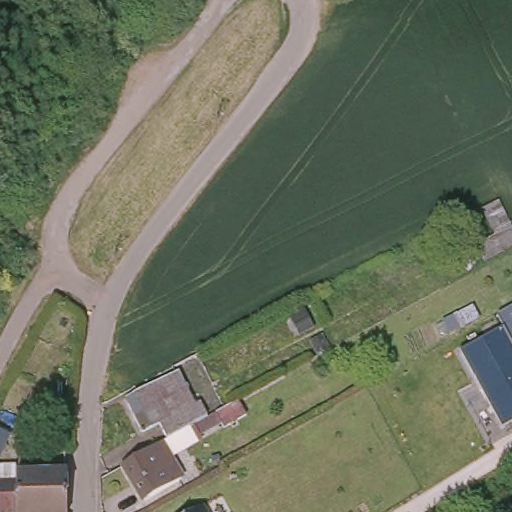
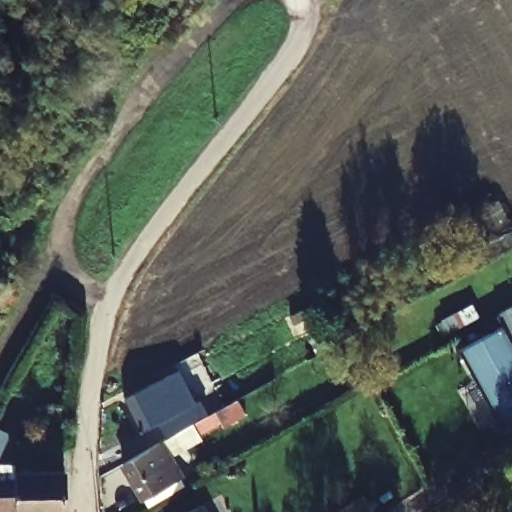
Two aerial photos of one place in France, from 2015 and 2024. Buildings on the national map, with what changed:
unchanged [(484,230),(477,203),(500,194),(512,226),(512,243),(478,262),(466,244),(484,230)]
unchanged [(512,421),(502,427),(459,351),(502,327),(496,315),(512,306),(512,340),(511,341),(512,343),(512,421)]
unchanged [(124,395),(140,387),(172,371),(190,403),(194,401),(202,415),(192,421),(165,437),(157,420),(140,428),(124,395)]
unchanged [(142,497),(121,461),(157,441),(163,452),(177,477),(142,497)]
unchanged [(17,456),(16,465),(65,465),(65,489),(0,489),(0,456),(17,456)]
unchanged [(65,489),(65,496),(65,512),(17,512),(0,512),(0,489),(65,489)]
unchanged [(210,512),(172,512),(201,497),(210,512)]

